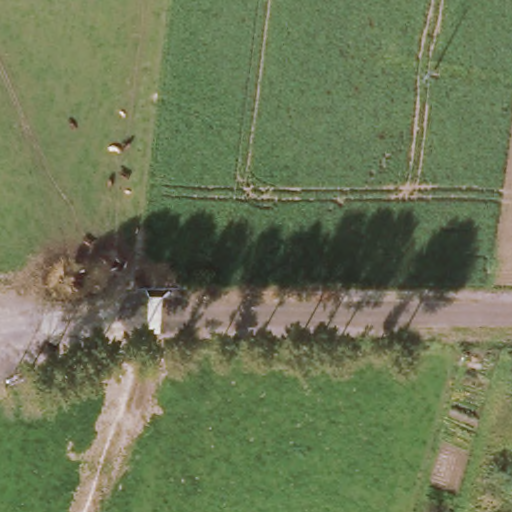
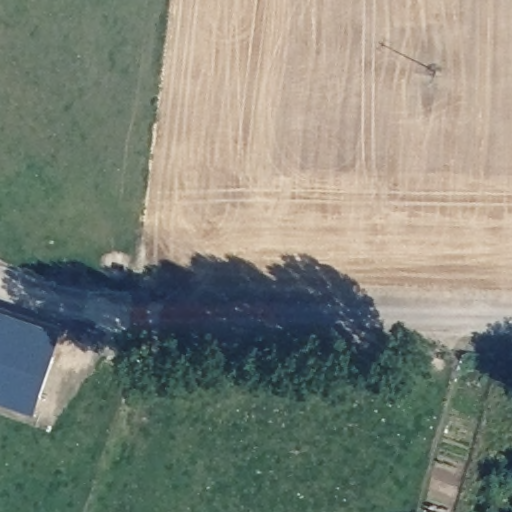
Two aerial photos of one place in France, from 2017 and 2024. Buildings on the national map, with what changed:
new [(0,398),(0,304),(65,325),(35,409),(0,398)]

